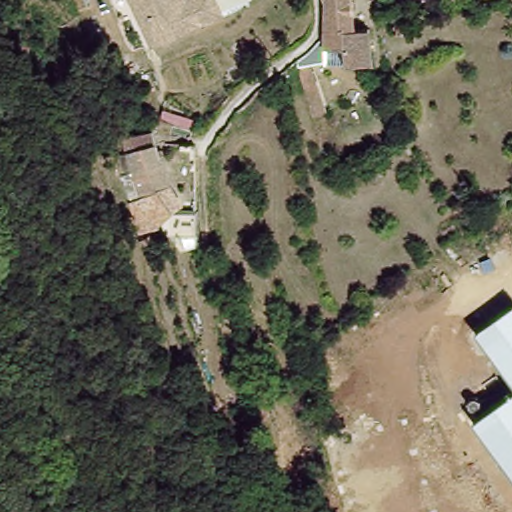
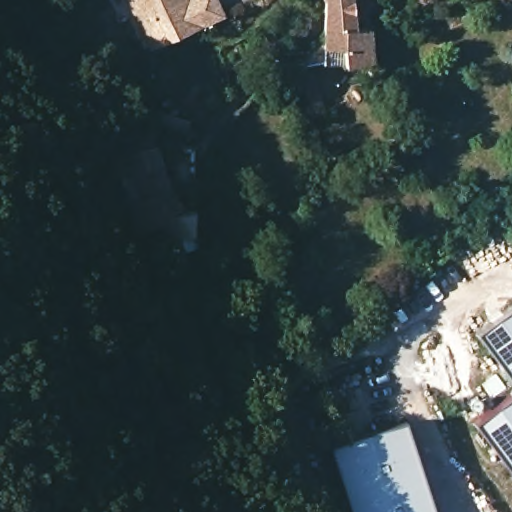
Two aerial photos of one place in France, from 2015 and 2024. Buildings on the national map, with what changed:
unchanged [(220,16),(149,49),(125,0),(212,0),(220,16)]
unchanged [(372,66),(344,67),(344,41),(324,42),(328,28),(326,0),(353,0),(356,40),(371,40),(372,66)]
unchanged [(164,166),(173,191),(172,191),(158,196),(141,202),(132,206),(122,178),(125,177),(120,158),(126,156),(123,142),(127,140),(155,134),(164,166)]
new [(193,239),(198,248),(171,257),(157,229),(139,236),(132,206),(141,202),(158,196),(172,191),(184,206),(180,212),(193,212),(193,239)]
demolished [(193,212),(193,239),(172,239),(173,212),(193,212)]
unchanged [(478,332),(512,307),(512,381),(478,332)]
unchanged [(475,422),(512,394),(512,472),(475,422)]
new [(436,512),(352,512),(330,445),(406,420),(436,512)]

